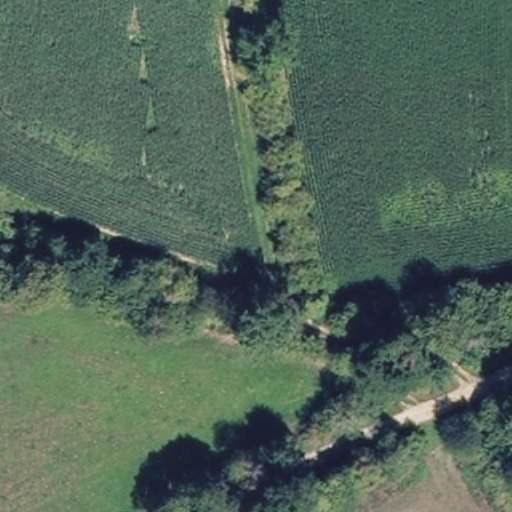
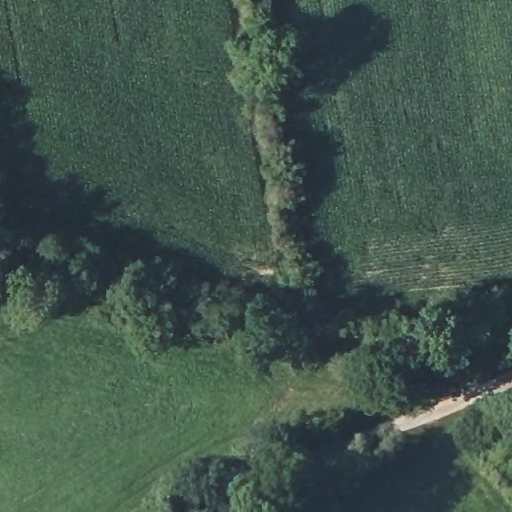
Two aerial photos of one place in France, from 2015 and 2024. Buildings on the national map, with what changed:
[]

